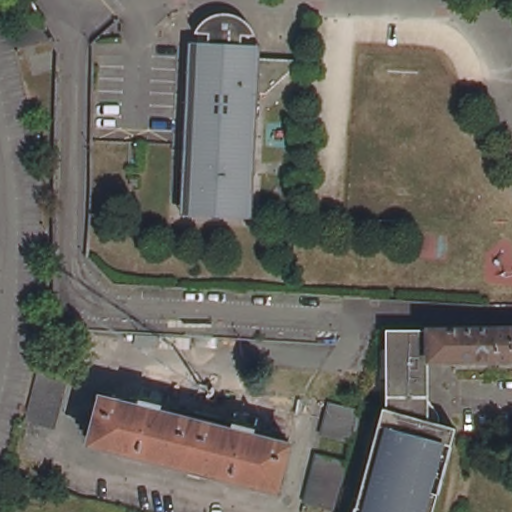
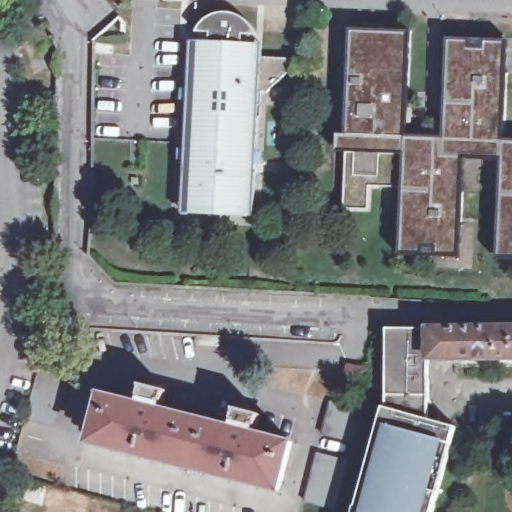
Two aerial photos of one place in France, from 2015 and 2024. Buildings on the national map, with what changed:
unchanged [(249,214),(196,212),(185,211),(185,202),(187,167),(188,147),(188,142),(190,112),(191,89),(192,72),(193,54),(193,41),(201,41),(214,41),(214,32),(200,32),(201,29),(203,26),(205,23),(207,21),(209,19),(211,17),(214,15),(217,13),(220,12),(222,11),(226,10),(229,10),(232,10),(235,10),(238,11),(241,12),(242,12),(245,13),(247,15),(250,16),(252,18),(255,21),(256,23),(258,26),(260,28),(260,31),(261,34),(247,34),(247,44),(260,44),(266,44),(265,56),(306,58),(272,91),(259,90),(257,114),(262,115),(261,150),(260,171),(258,207),(258,214),(249,214)]
new [(512,141),(512,261),(495,260),(500,159),(463,158),(458,258),(398,256),(402,188),(404,156),(345,153),(336,152),(337,134),(345,135),(351,31),(409,33),(405,137),(443,139),(447,39),(508,42),(503,141),(512,141)]
new [(345,153),(404,156),(402,188),(368,187),(367,209),(342,208),(345,153)]
unchanged [(433,326),(512,323),(512,354),(438,356),(433,357),(433,326)]
unchanged [(378,437),(386,404),(390,405),(390,371),(390,327),(427,326),(433,326),(433,357),(433,359),(433,376),(433,417),(442,420),(442,419),(460,423),(437,506),(433,506),(434,512),(358,512),(378,437)]
unchanged [(294,438),(280,486),(93,437),(105,389),(146,400),(147,396),(163,398),(162,405),(236,424),(238,418),(256,423),(255,428),(294,438)]
unchanged [(365,404),(366,404),(359,438),(358,438),(325,429),(333,395),(365,404)]
unchanged [(350,460),(340,508),(305,500),(318,452),(350,460)]
unchanged [(43,487),(38,505),(4,496),(8,477),(43,487)]

